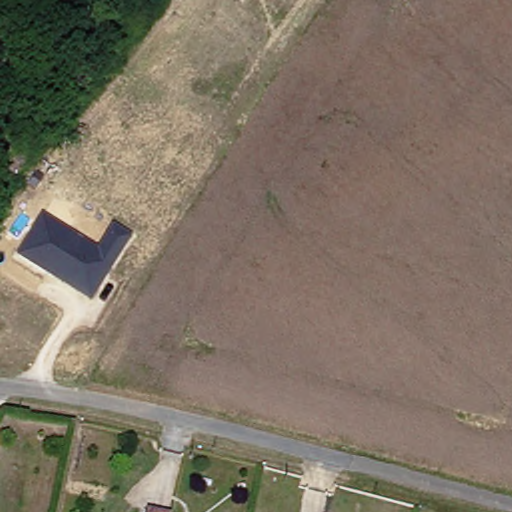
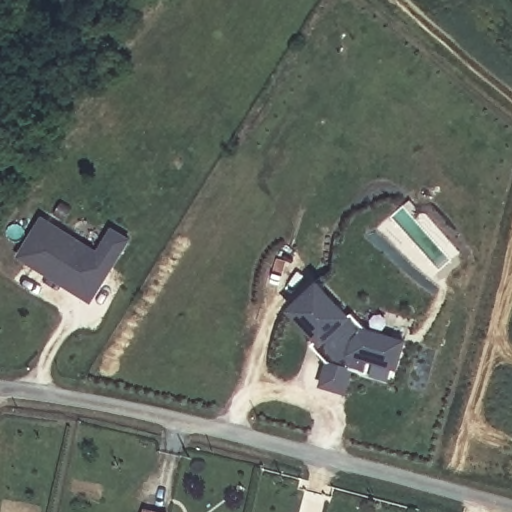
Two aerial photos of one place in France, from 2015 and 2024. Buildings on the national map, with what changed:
unchanged [(97,250),(115,226),(133,238),(90,305),(15,258),(43,215),(97,250)]
new [(323,355),(311,342),(316,338),(287,307),(317,280),(348,313),(352,310),(367,326),(366,327),(405,339),(395,366),(370,358),(365,372),(350,367),(343,390),(320,383),(327,360),(323,355)]

